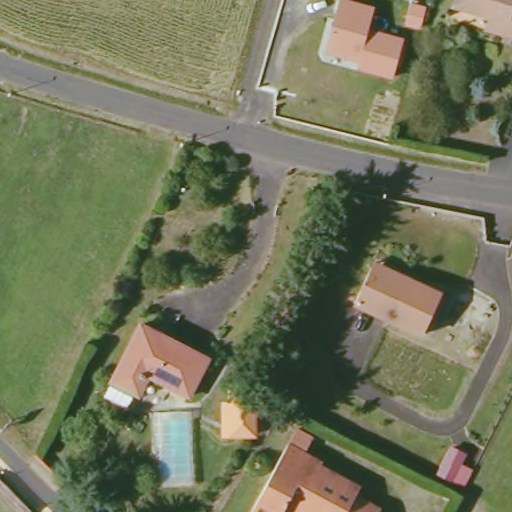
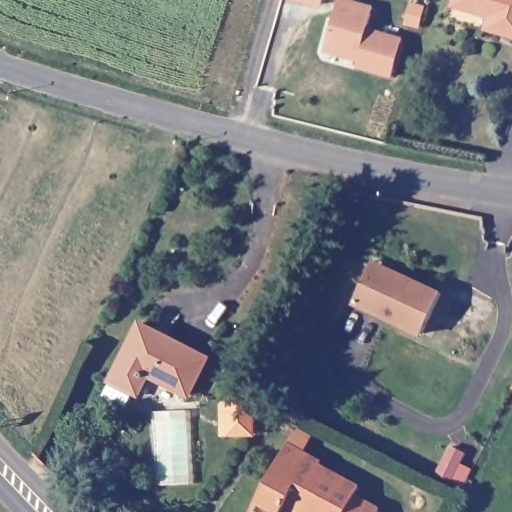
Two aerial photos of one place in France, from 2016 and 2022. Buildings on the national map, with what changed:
unchanged [(341,0),(376,9),(371,31),(405,41),(394,82),(358,72),(360,65),(326,55),(341,0)]
unchanged [(456,0),(512,0),(512,38),(503,36),(506,23),(456,9),(454,7),(456,0)]
unchanged [(441,297),(423,337),(354,305),(376,258),(410,274),(407,280),(441,297)]
unchanged [(216,357),(191,402),(153,381),(134,415),(106,393),(145,323),(216,357)]
unchanged [(230,440),(228,406),(261,405),(269,440),(230,440)]
unchanged [(160,491),(157,414),(196,412),(204,488),(160,491)]
unchanged [(286,450),(295,437),(309,445),(301,458),(361,492),(357,500),(379,512),(305,512),(294,506),(290,512),(257,512),(286,450)]

